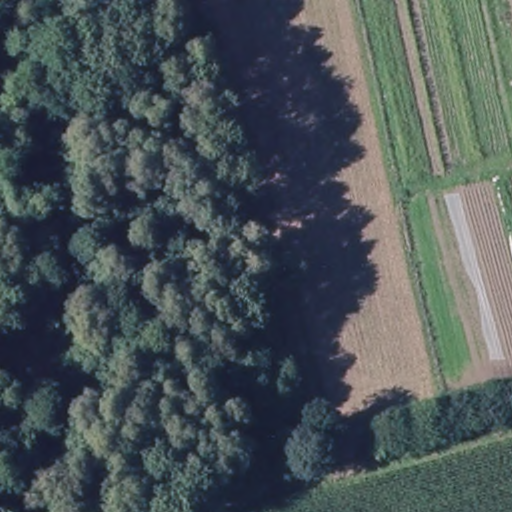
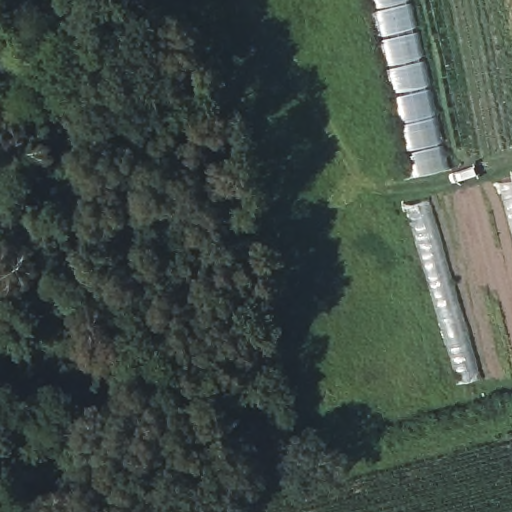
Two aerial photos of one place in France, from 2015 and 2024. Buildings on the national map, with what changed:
new [(448,171),(401,180),(364,0),(408,0),(448,171)]
new [(512,177),(512,242),(497,181),(512,177)]
new [(427,200),(481,379),(455,386),(403,204),(427,200)]

